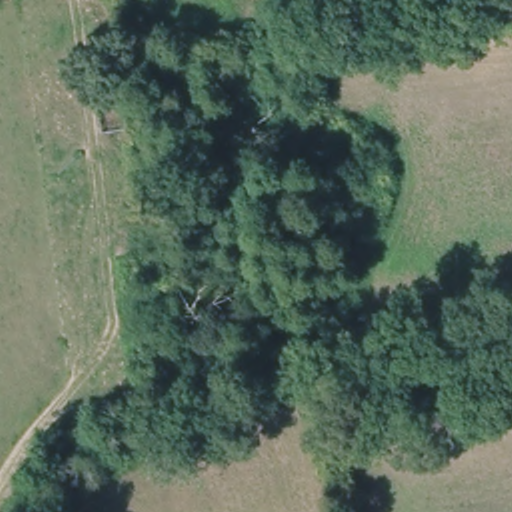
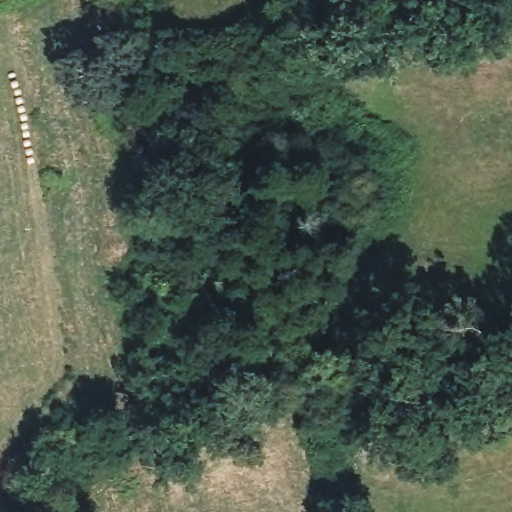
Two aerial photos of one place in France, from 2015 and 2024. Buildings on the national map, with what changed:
[]

